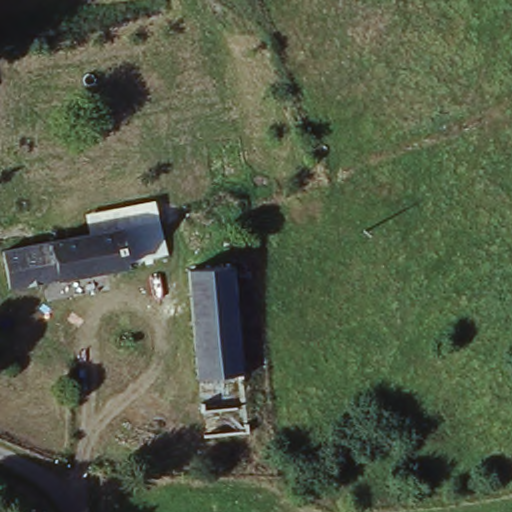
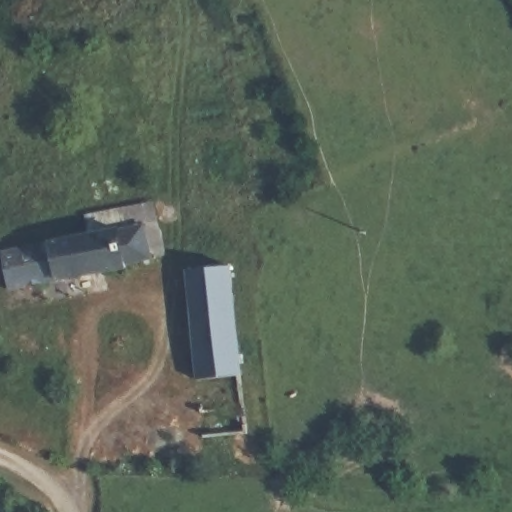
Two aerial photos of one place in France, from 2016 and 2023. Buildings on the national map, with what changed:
unchanged [(147,224),(156,262),(15,290),(8,251),(147,224)]
unchanged [(247,375),(204,379),(193,270),(236,266),(247,375)]

